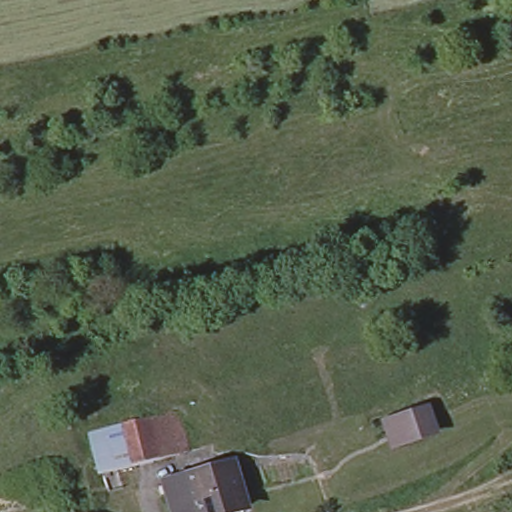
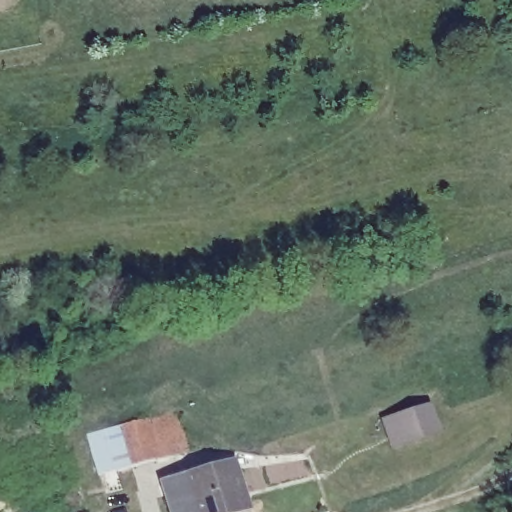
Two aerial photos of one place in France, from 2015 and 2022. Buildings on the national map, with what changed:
unchanged [(424,407),(429,406),(437,430),(432,432),(431,432),(408,439),(394,443),(387,419),(399,415),(424,407)]
unchanged [(181,411),(191,452),(183,453),(158,460),(148,419),(181,411)]
unchanged [(101,474),(90,434),(148,419),(158,460),(101,474)]
unchanged [(248,510),(241,512),(200,512),(189,476),(235,462),(248,510)]
unchanged [(189,476),(200,512),(175,512),(167,482),(189,476)]

